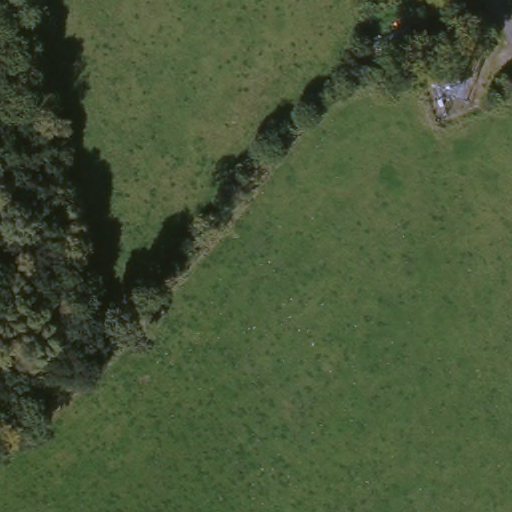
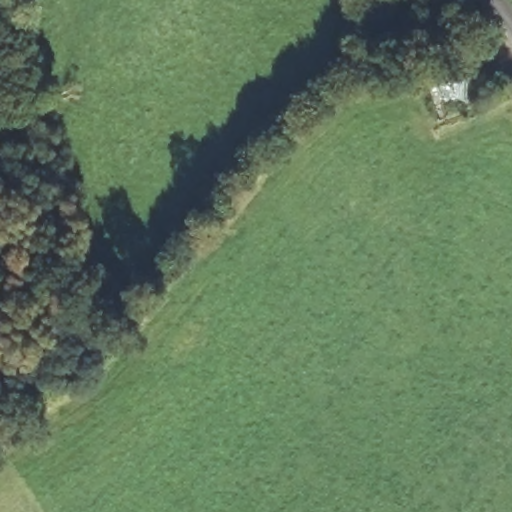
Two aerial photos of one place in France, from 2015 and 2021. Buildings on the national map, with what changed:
[]

